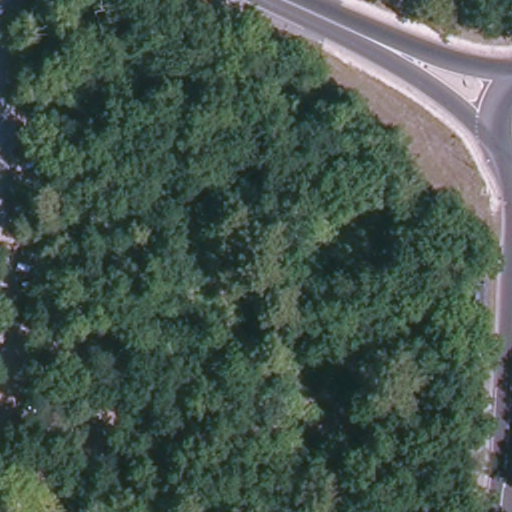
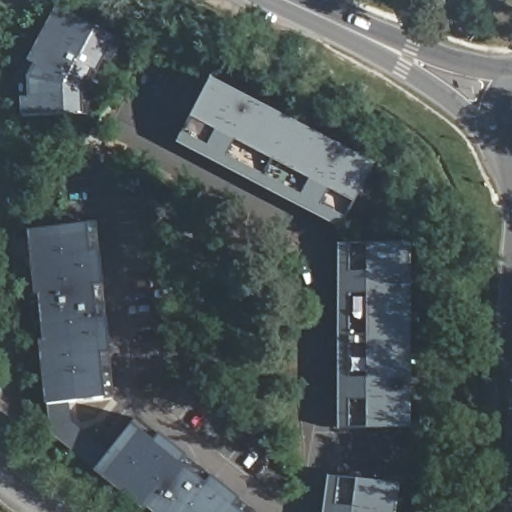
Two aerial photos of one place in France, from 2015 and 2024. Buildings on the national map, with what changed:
new [(21,118),(19,98),(28,97),(26,77),(33,65),(28,61),(58,6),(114,40),(96,73),(93,71),(81,90),(82,114),(21,118)]
new [(209,82),(372,167),(339,229),(177,142),(209,82)]
new [(184,458),(209,477),(238,500),(252,512),(149,512),(146,509),(143,512),(142,512),(94,471),(50,432),(45,406),(39,341),(44,341),(39,293),(33,293),(26,231),(85,226),(93,224),(96,252),(101,287),(104,318),(108,355),(111,399),(104,398),(69,402),(73,421),(108,453),(130,426),(135,418),(156,435),(184,458)]
new [(349,245),(408,245),(407,428),(348,427),(338,426),(338,247),(349,245)]
new [(396,485),(393,512),(322,512),(327,479),(339,479),(396,485)]

